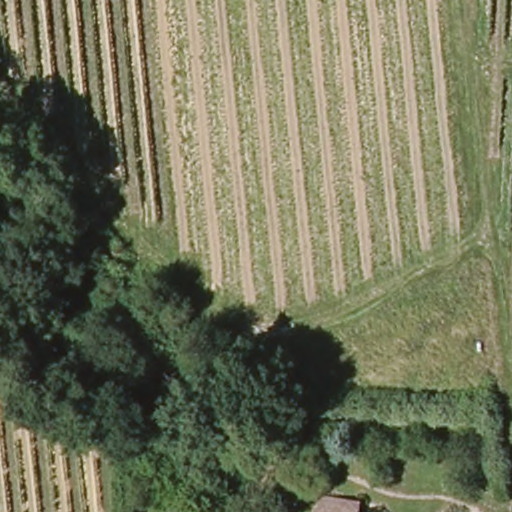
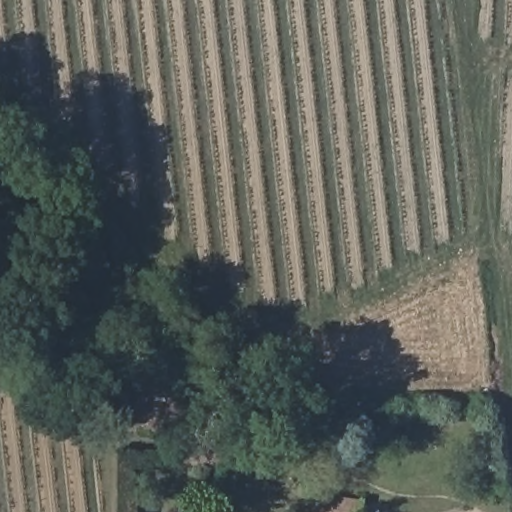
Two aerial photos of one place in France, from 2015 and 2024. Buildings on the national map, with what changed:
unchanged [(339,479),(337,499),(356,502),(354,512),(315,512),(317,498),(322,500),(325,476),(339,479)]

